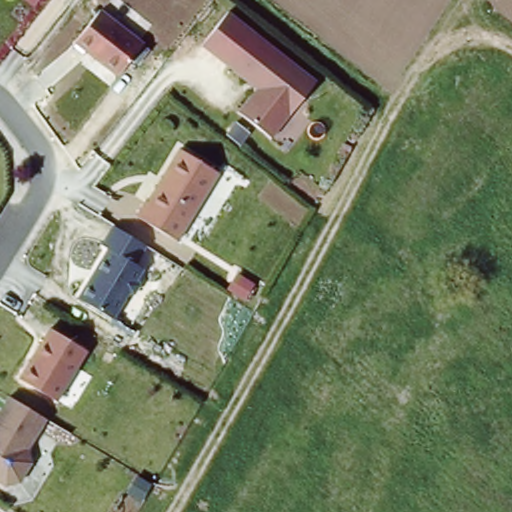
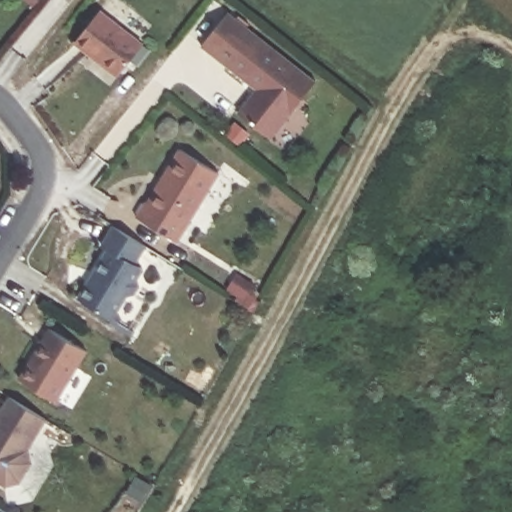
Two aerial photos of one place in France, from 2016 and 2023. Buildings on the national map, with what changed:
unchanged [(240,113),(260,89),(205,42),(237,9),(320,78),(274,137),(240,113)]
unchanged [(80,42),(105,10),(146,42),(117,77),(80,42)]
unchanged [(179,148),(217,173),(177,240),(136,216),(179,148)]
unchanged [(81,293),(115,254),(100,244),(110,230),(150,249),(141,262),(145,264),(113,316),(81,293)]
unchanged [(22,378),(54,324),(95,352),(60,401),(22,378)]
unchanged [(7,396),(46,418),(28,449),(33,462),(19,483),(5,486),(0,483),(0,408),(7,396)]

